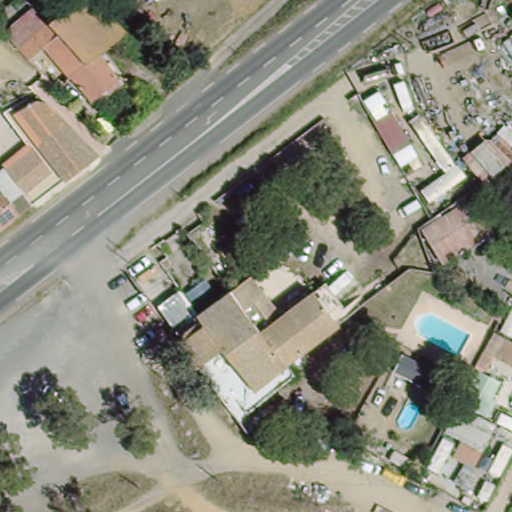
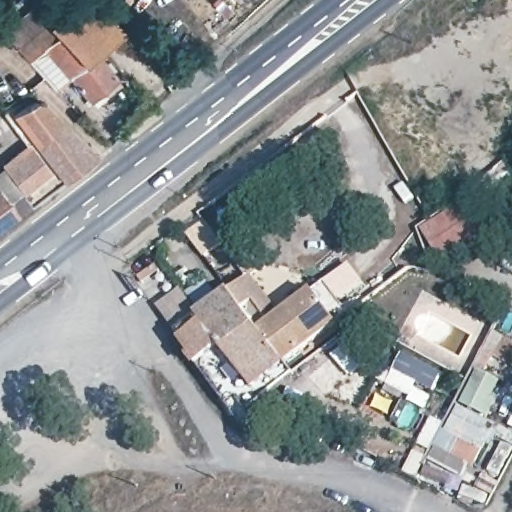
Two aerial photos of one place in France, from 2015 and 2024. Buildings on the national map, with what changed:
unchanged [(46,73),(23,48),(8,31),(39,4),(56,22),(83,0),(103,0),(132,32),(113,47),(106,54),(127,77),(96,102),(77,79),(62,90),(46,73)]
unchanged [(0,190),(2,189),(11,201),(24,194),(7,167),(35,143),(13,114),(43,98),(54,106),(102,155),(61,186),(49,196),(34,208),(22,217),(21,218),(4,230),(0,233),(0,190)]
unchanged [(472,196),(491,229),(440,264),(417,227),(472,196)]
unchanged [(239,288),(226,273),(238,264),(250,279),(239,288)]
unchanged [(239,421),(184,367),(193,361),(173,335),(159,316),(182,298),(199,319),(229,296),(239,288),(274,333),(306,309),(320,297),(340,323),(326,334),(288,363),(299,375),(263,403),(239,421)]
unchanged [(495,328),(512,336),(512,359),(486,347),(495,328)]
unchanged [(490,428),(478,451),(473,449),(465,465),(450,458),(458,442),(440,433),(452,409),(490,428)]
unchanged [(512,439),(512,447),(493,437),(496,431),(512,439)]
unchanged [(182,444),(186,455),(178,461),(174,449),(182,444)]

